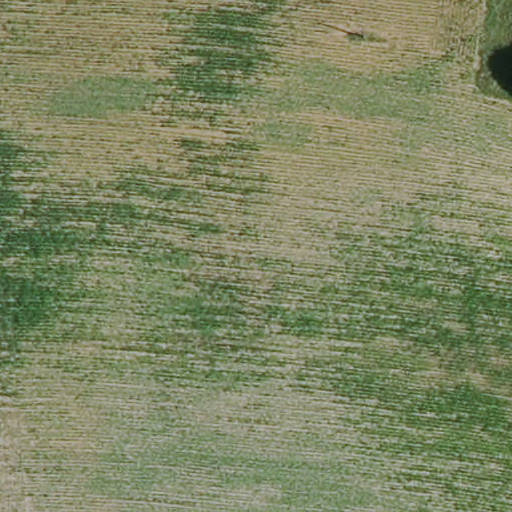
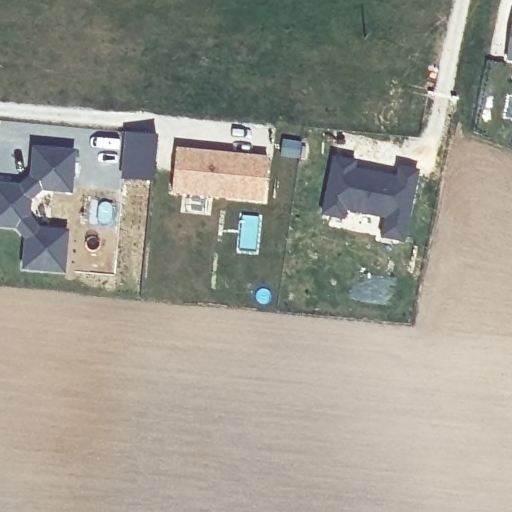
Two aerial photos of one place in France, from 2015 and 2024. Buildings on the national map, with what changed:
new [(512,17),(512,62),(505,60),(512,17)]
new [(125,132),(156,136),(152,182),(121,178),(125,132)]
new [(64,272),(22,268),(23,240),(15,227),(0,227),(0,186),(20,186),(30,177),(31,147),(75,150),(72,192),(41,190),(30,200),(28,217),(40,229),(67,232),(64,272)]
new [(267,158),(261,201),(172,192),(175,148),(267,158)]
new [(418,170),(404,241),(381,239),(385,218),(345,211),(343,220),(320,215),(331,157),(355,161),(353,169),(388,174),(389,165),(418,170)]

